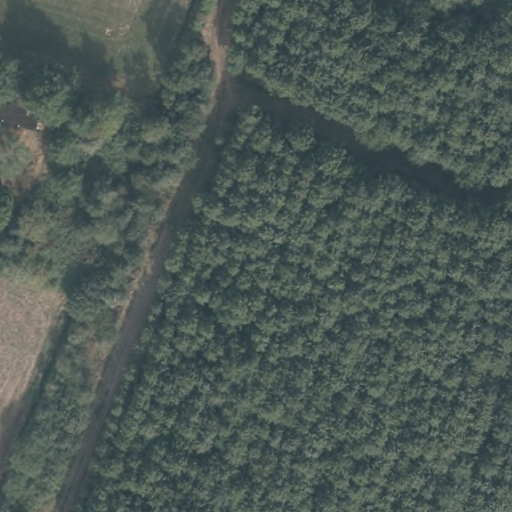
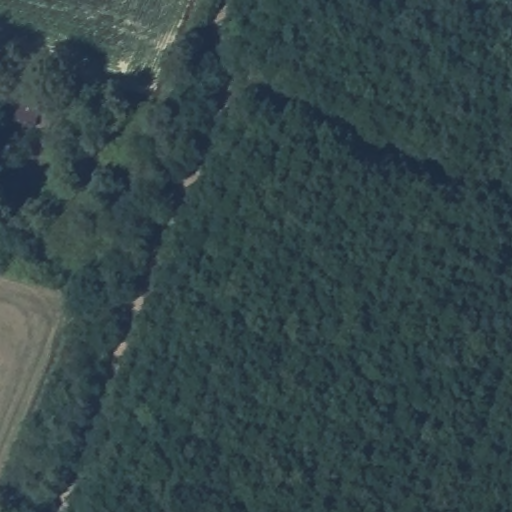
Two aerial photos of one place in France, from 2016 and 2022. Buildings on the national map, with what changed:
unchanged [(51,90),(47,105),(52,107),(47,130),(0,118),(0,77),(51,90)]

